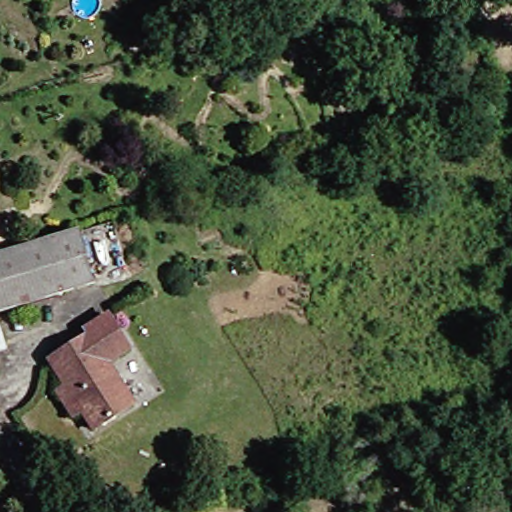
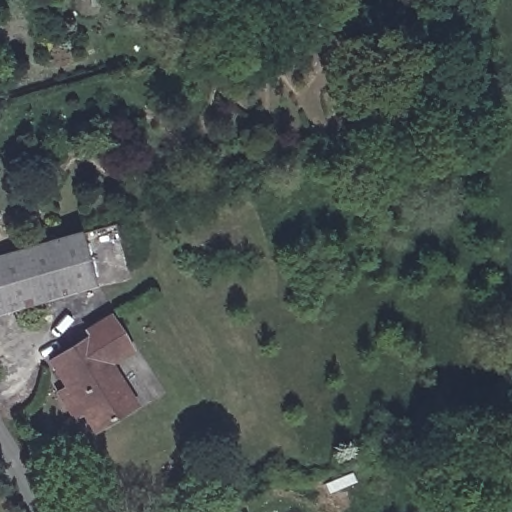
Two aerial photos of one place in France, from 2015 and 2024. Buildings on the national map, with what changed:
unchanged [(54,225),(75,219),(87,268),(0,292),(0,241),(54,225)]
unchanged [(69,384),(53,357),(95,333),(90,324),(114,310),(133,344),(110,357),(136,403),(95,426),(85,409),(75,415),(60,389),(69,384)]

